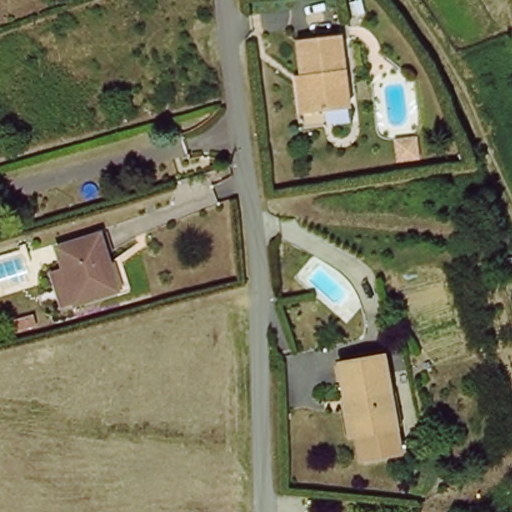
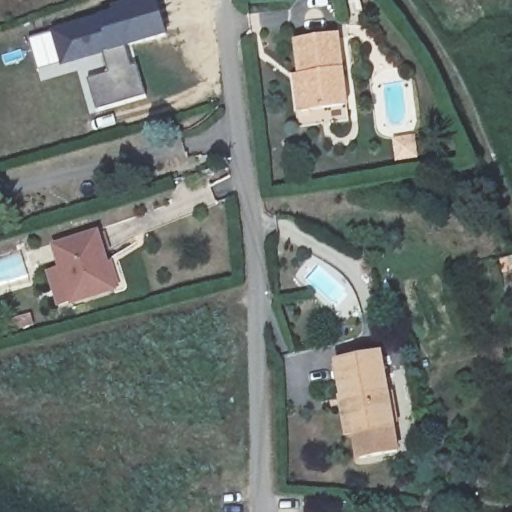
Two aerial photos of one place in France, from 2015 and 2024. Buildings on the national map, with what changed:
new [(100,112),(90,81),(112,74),(106,55),(63,68),(62,65),(41,70),(32,41),(53,33),(54,32),(114,10),(112,7),(138,0),(158,0),(169,37),(127,49),(133,68),(138,68),(147,97),(100,112)]
unchanged [(297,67),(302,67),(298,32),(342,28),(353,114),(337,116),(334,99),(313,102),(302,104),(297,67)]
unchanged [(75,305),(60,246),(103,236),(118,294),(75,305)]
unchanged [(345,350),(386,350),(387,424),(388,448),(352,448),(352,426),(352,388),(344,388),(345,350)]

